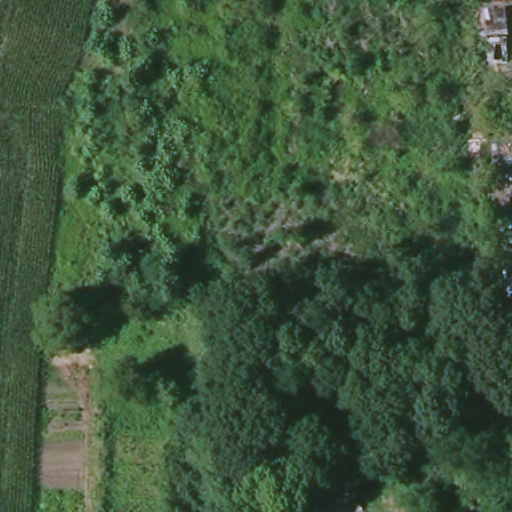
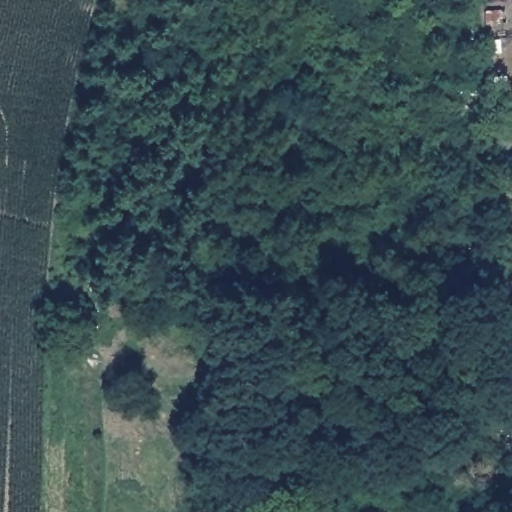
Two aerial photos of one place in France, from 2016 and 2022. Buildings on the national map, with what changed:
unchanged [(512,46),(512,63),(482,63),(479,8),(511,10),(512,46)]

